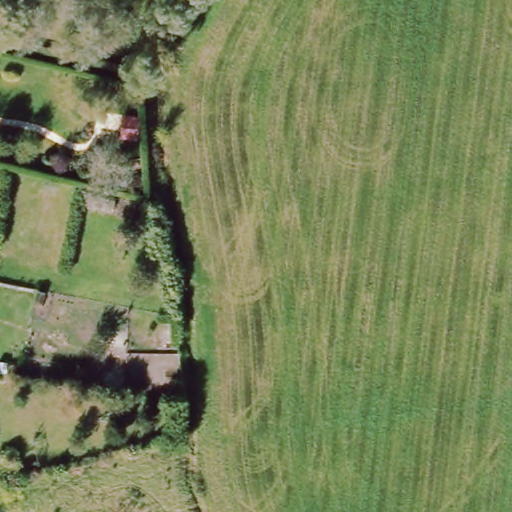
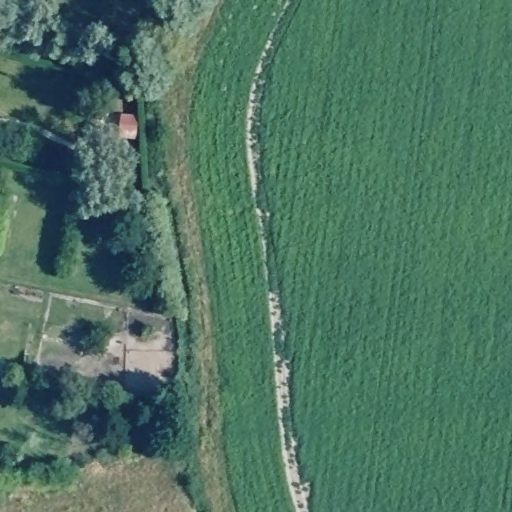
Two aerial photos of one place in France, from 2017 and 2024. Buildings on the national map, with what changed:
[]

